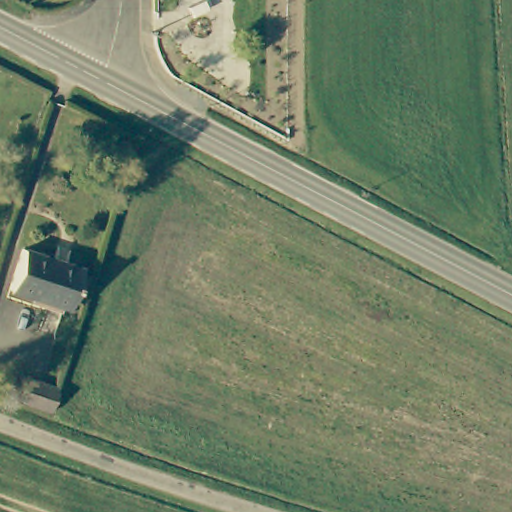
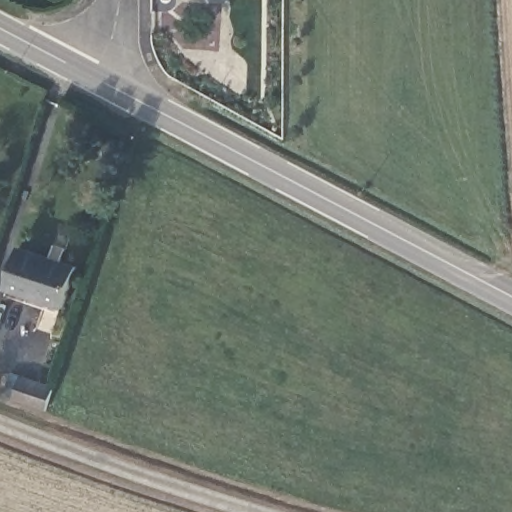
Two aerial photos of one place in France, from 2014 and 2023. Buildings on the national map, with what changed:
unchanged [(69,308),(13,289),(25,250),(83,270),(69,308)]
unchanged [(6,391),(13,373),(48,384),(39,407),(6,391)]

